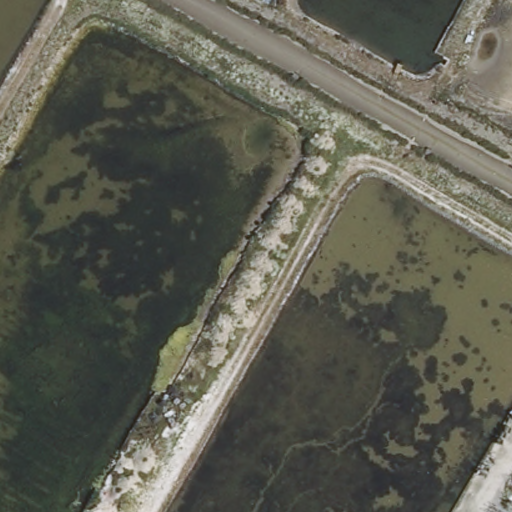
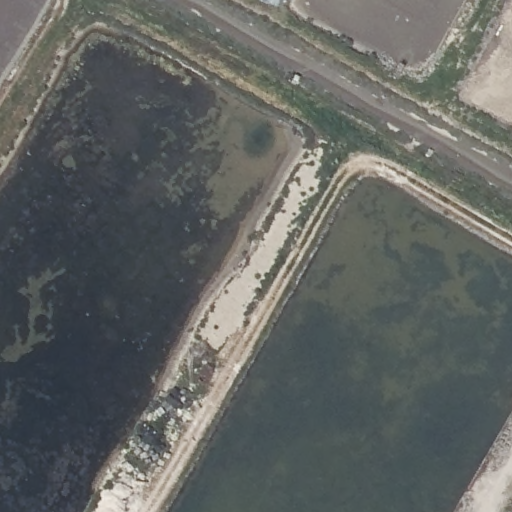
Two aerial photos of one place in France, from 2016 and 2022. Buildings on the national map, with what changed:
[]

